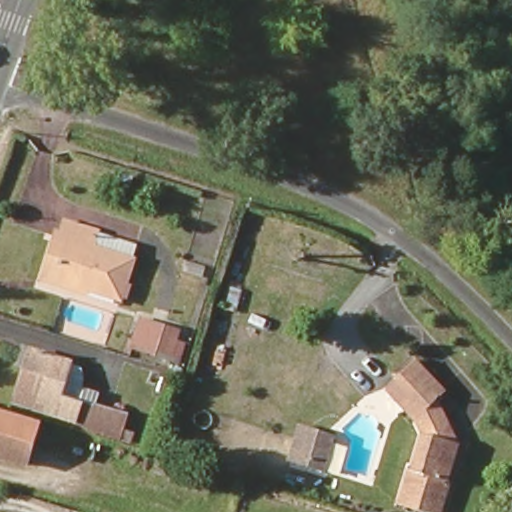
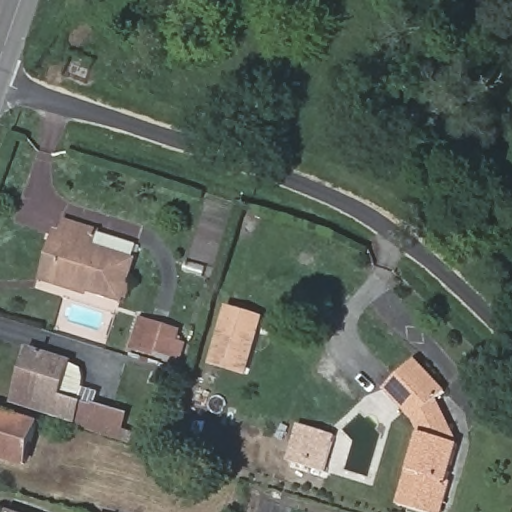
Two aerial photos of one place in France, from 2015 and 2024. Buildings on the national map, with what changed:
unchanged [(40,282),(43,276),(49,251),(51,245),(56,246),(61,229),(93,239),(134,252),(129,267),(120,296),(117,307),(49,286),(40,283),(40,282)]
new [(247,377),(209,366),(227,306),(264,317),(247,377)]
unchanged [(173,360),(134,347),(136,340),(141,323),(180,335),(175,353),(173,360)]
unchanged [(114,442),(84,432),(85,426),(13,405),(28,352),(64,363),(65,365),(78,368),(83,379),(76,406),(89,410),(120,419),(114,442)]
unchanged [(437,406),(448,430),(457,449),(446,485),(449,486),(441,512),(409,512),(397,508),(407,474),(411,475),(421,439),(415,426),(403,412),(385,392),(396,382),(416,365),(444,397),(437,406)]
unchanged [(0,462),(0,417),(32,427),(21,468),(0,462)]
unchanged [(289,455),(297,427),(330,437),(323,464),(289,455)]

